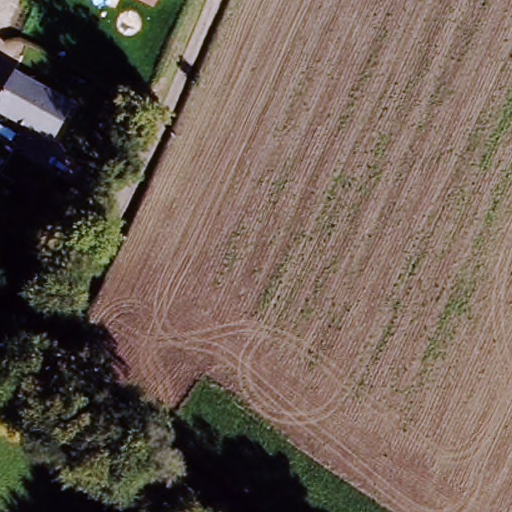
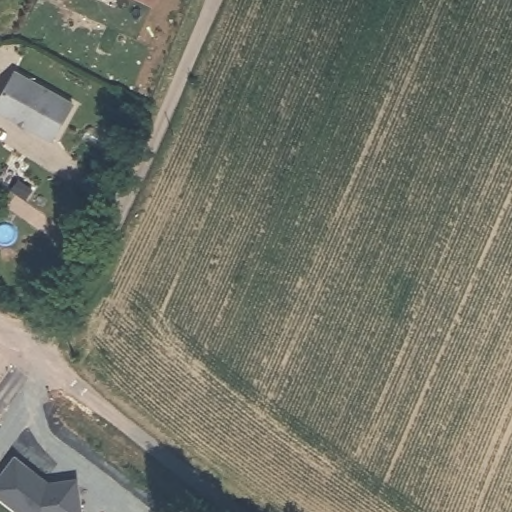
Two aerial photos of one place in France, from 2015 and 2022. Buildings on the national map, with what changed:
unchanged [(158,0),(153,11),(130,0),(158,0)]
unchanged [(0,90),(11,69),(70,101),(50,137),(0,110),(0,90)]
new [(78,479),(84,512),(17,512),(0,499),(0,475),(15,455),(50,480),(78,479)]

